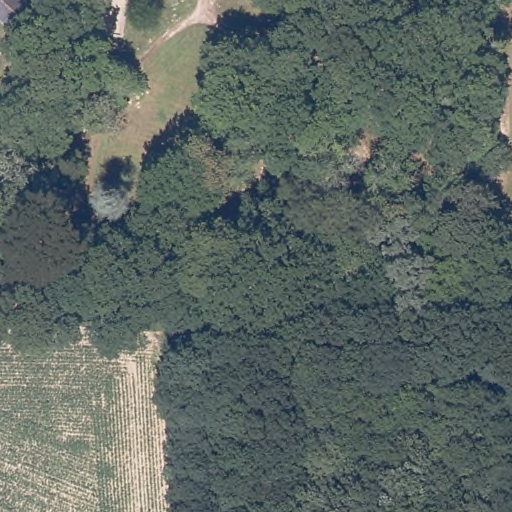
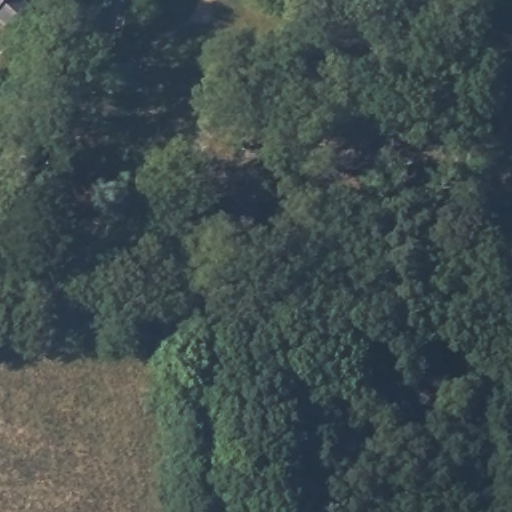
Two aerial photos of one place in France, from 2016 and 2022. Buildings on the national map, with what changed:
unchanged [(0,21),(0,0),(27,0),(30,3),(8,28),(0,21)]
unchanged [(86,0),(107,0),(106,38),(85,39),(86,0)]
unchanged [(38,315),(38,327),(0,326),(1,314),(1,300),(39,301),(38,315)]

